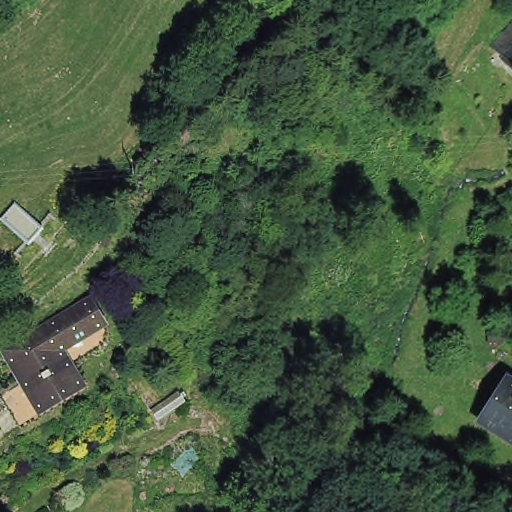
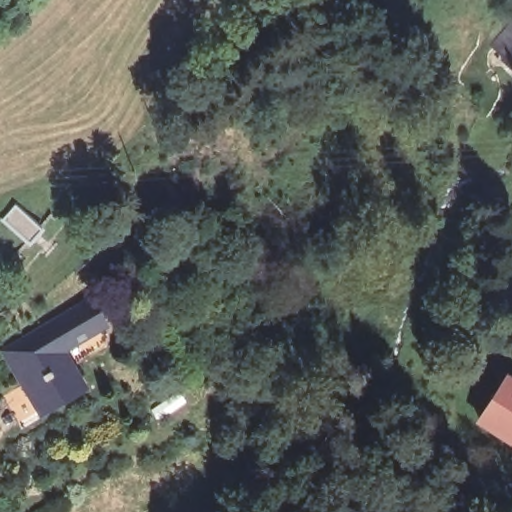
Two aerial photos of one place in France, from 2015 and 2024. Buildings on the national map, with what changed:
unchanged [(490,50),(484,44),(510,16),(512,18),(512,73),(494,54),(490,50)]
unchanged [(512,258),(512,260),(511,258),(512,258)]
unchanged [(77,391),(35,415),(0,356),(0,355),(85,305),(99,328),(55,355),(77,391)]
unchanged [(506,388),(512,392),(512,448),(482,430),(506,388)]

